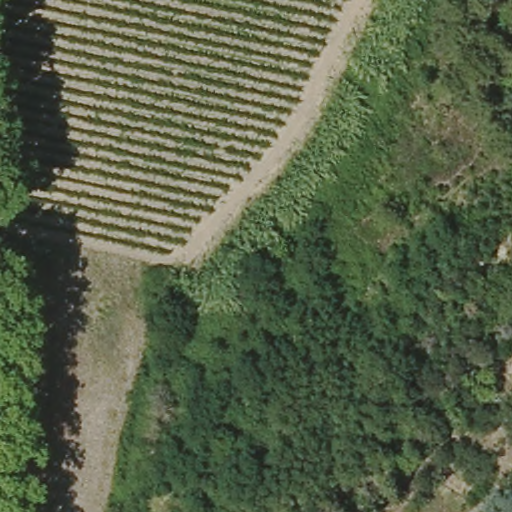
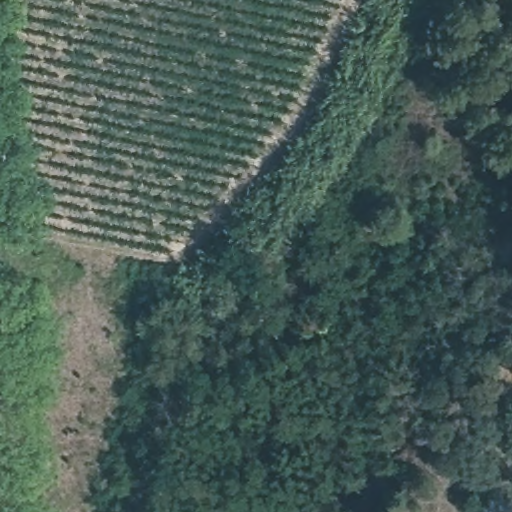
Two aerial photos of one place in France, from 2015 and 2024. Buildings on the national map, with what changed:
unchanged [(507,376),(512,364),(512,379),(507,376)]

